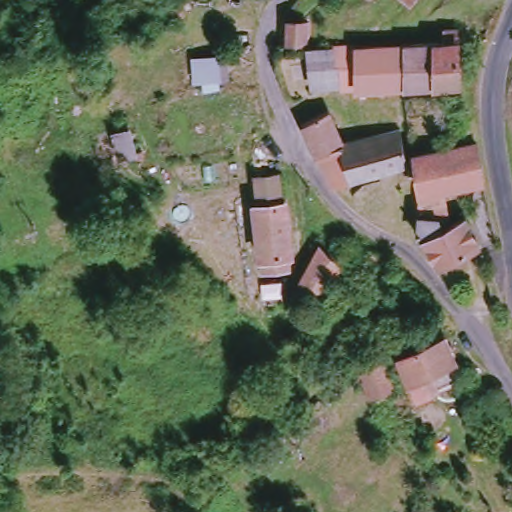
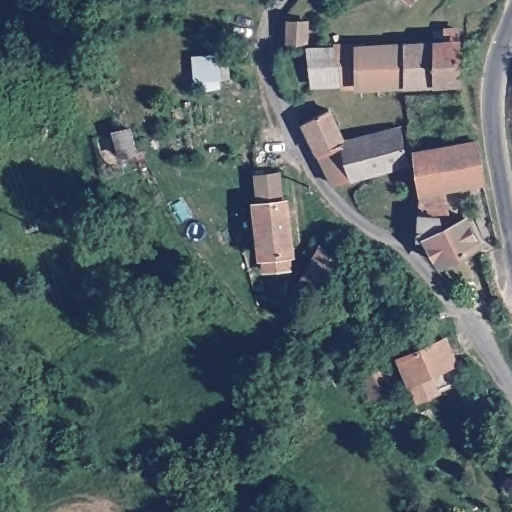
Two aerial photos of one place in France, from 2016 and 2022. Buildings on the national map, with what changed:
unchanged [(396,0),(414,0),(410,8),(396,0)]
unchanged [(292,46),(293,23),(310,23),(311,38),(318,40),(318,47),(292,46)]
unchanged [(434,90),(433,50),(446,49),(447,37),(462,36),(460,89),(434,90)]
unchanged [(404,50),(406,89),(358,90),(338,88),(312,86),(311,56),(323,56),(323,49),(338,50),(359,50),(387,50),(404,50)]
unchanged [(404,50),(433,50),(434,90),(406,89),(404,50)]
unchanged [(205,88),(204,75),(198,76),(197,51),(225,52),(225,77),(221,77),(221,87),(205,88)]
unchanged [(135,111),(142,132),(129,140),(119,116),(135,111)]
unchanged [(301,123),(325,111),(342,139),(397,124),(406,181),(395,182),(390,171),(334,183),(316,154),(301,123)]
unchanged [(474,148),(478,192),(431,197),(436,229),(446,222),(461,245),(428,270),(411,244),(414,197),(407,156),(474,148)]
unchanged [(135,154),(142,151),(147,159),(138,162),(135,154)]
unchanged [(266,275),(265,257),(261,257),(253,210),(258,207),(254,178),(266,176),(267,204),(287,201),(295,251),(291,251),(291,273),(266,275)]
unchanged [(321,248),(341,264),(327,290),(304,280),(321,248)]
unchanged [(401,289),(370,290),(371,254),(395,252),(401,256),(401,289)]
unchanged [(412,392),(406,379),(391,351),(434,328),(449,357),(455,369),(412,392)]
unchanged [(375,341),(373,335),(381,331),(384,337),(375,341)]
unchanged [(367,397),(354,371),(376,359),(389,386),(367,397)]

